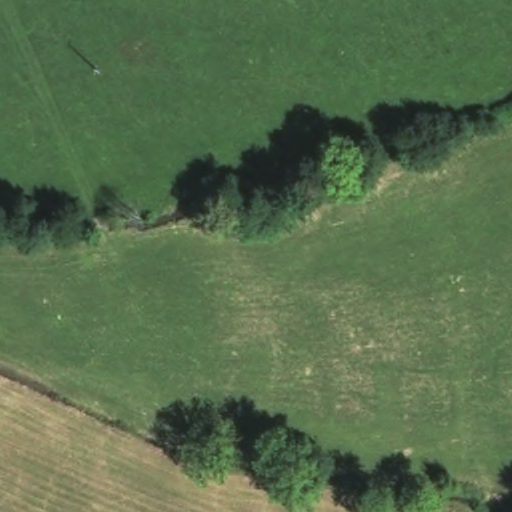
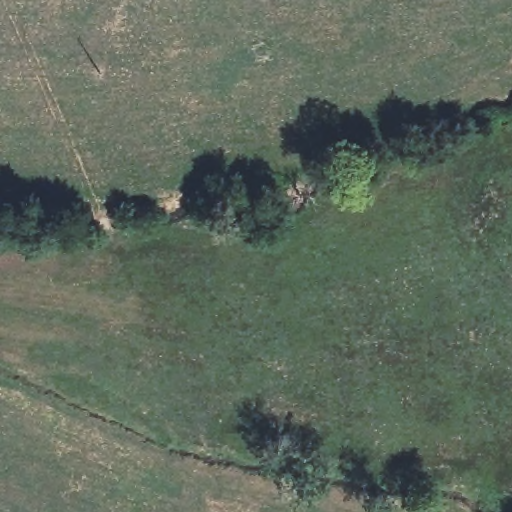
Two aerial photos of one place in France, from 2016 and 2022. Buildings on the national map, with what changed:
[]

